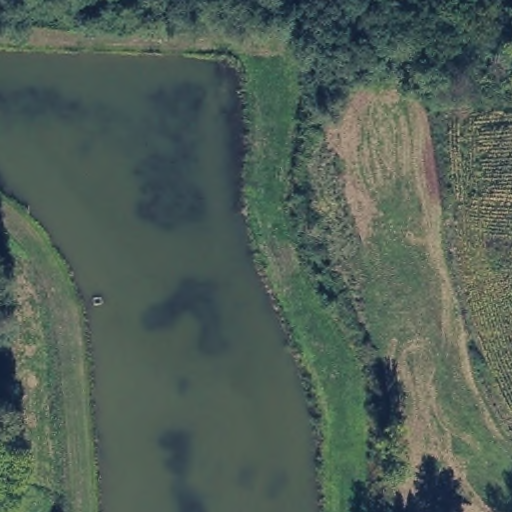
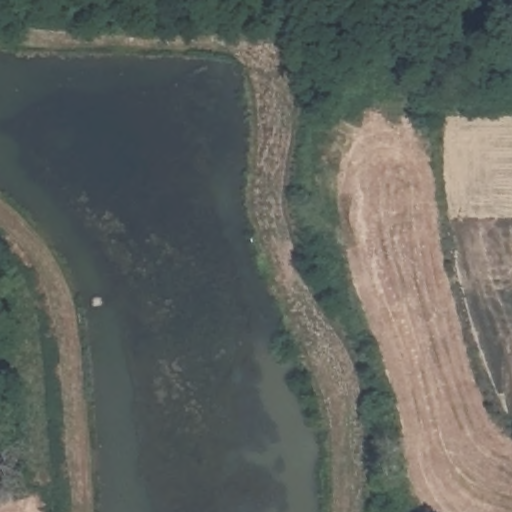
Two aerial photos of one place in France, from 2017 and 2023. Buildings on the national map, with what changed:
unchanged [(295,252),(279,256),(273,231),(288,227),(295,252)]

